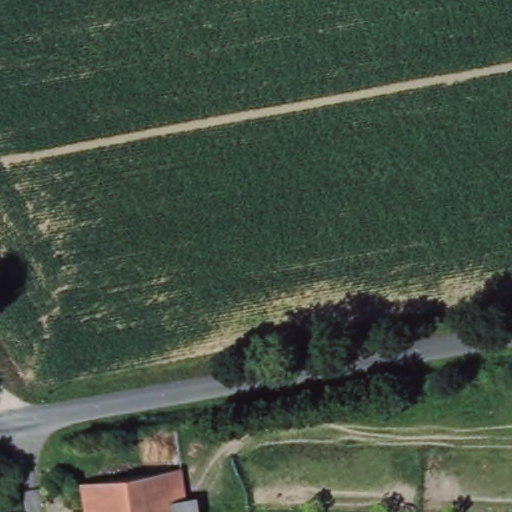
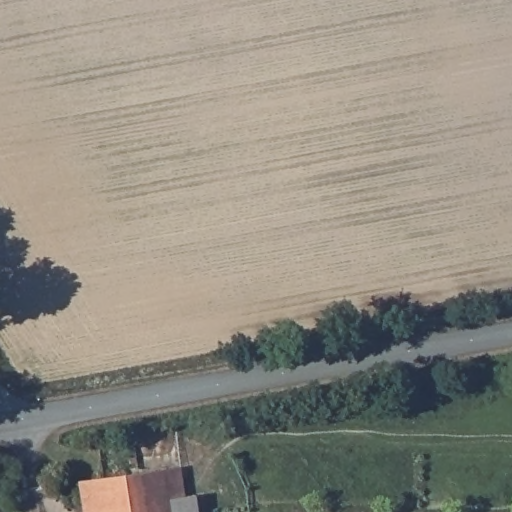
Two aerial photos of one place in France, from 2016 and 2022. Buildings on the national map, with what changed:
unchanged [(172,512),(89,512),(84,482),(184,468),(188,496),(170,499),(172,512)]
unchanged [(201,512),(175,512),(173,500),(198,496),(201,512)]

